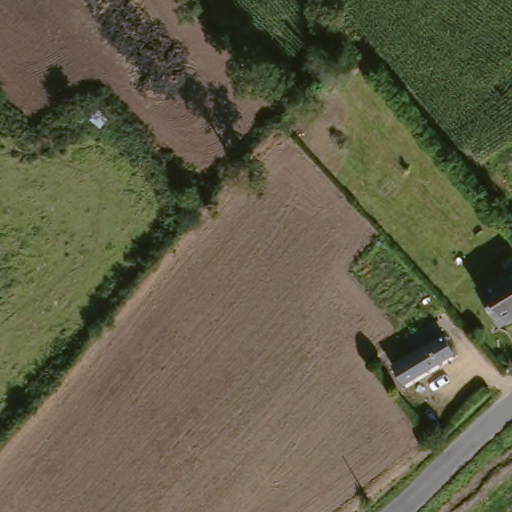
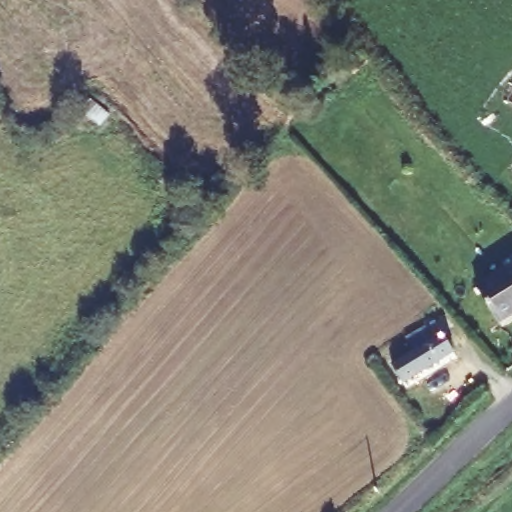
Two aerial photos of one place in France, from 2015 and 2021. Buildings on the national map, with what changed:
unchanged [(512,264),(512,310),(504,315),(483,282),(512,264)]
unchanged [(438,321),(456,351),(405,381),(388,352),(438,321)]

